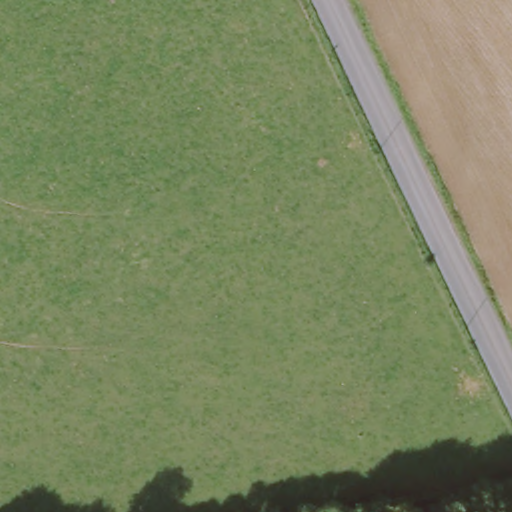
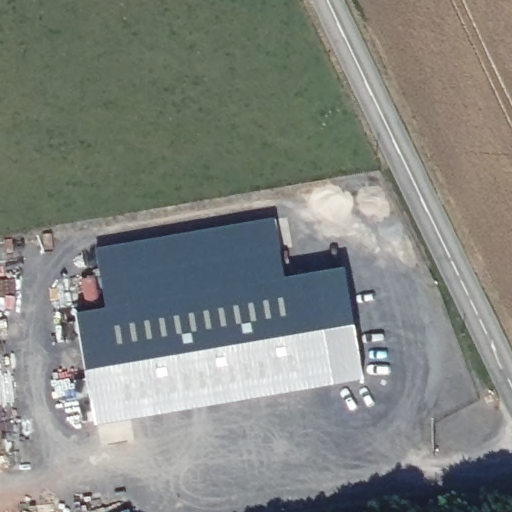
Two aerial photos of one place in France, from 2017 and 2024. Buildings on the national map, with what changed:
new [(279,220),(289,279),(349,269),(368,378),(100,424),(81,315),(111,310),(101,251),(279,220)]

